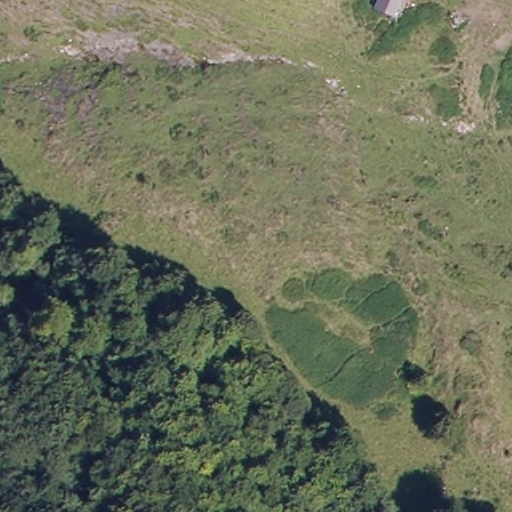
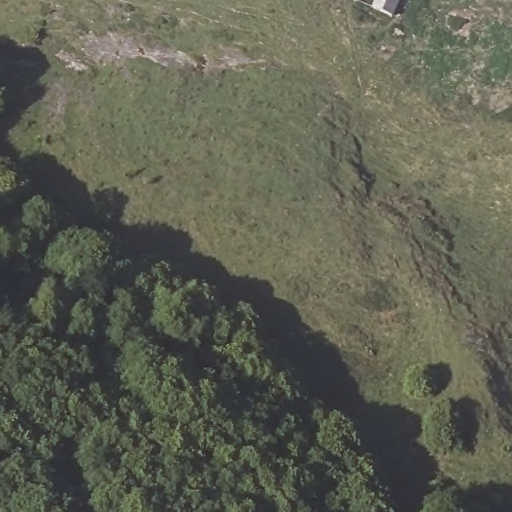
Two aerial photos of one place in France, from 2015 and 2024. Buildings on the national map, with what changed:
unchanged [(374,0),(398,0),(391,17),(369,11),(374,0)]

